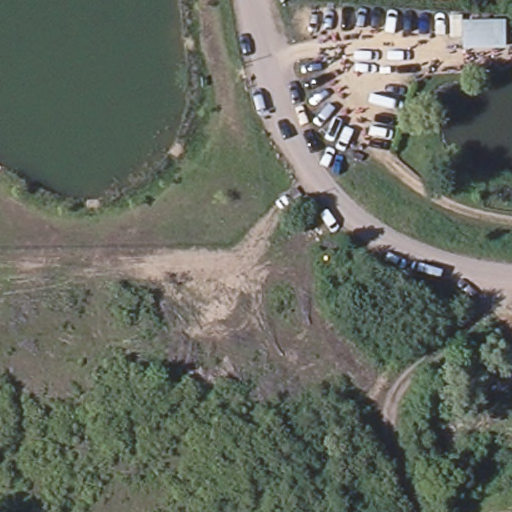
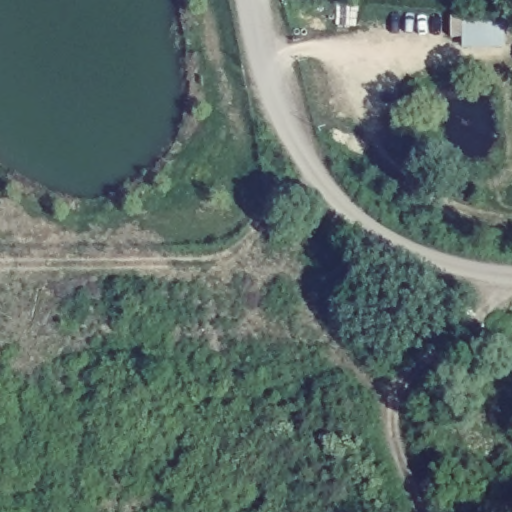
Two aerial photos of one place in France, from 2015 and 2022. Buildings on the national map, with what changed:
unchanged [(506,19),(507,49),(493,49),(494,58),(469,59),(470,47),(462,47),(462,19),(506,19)]

